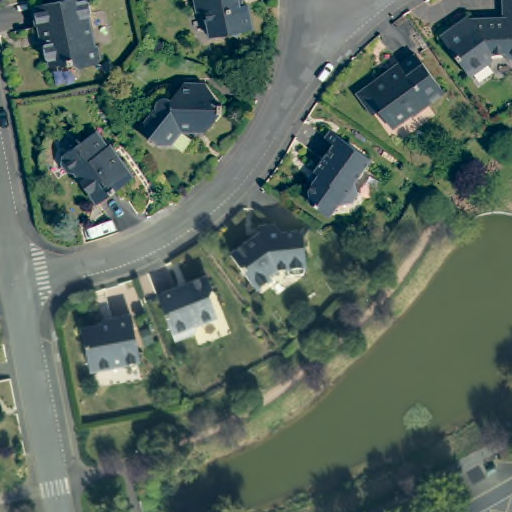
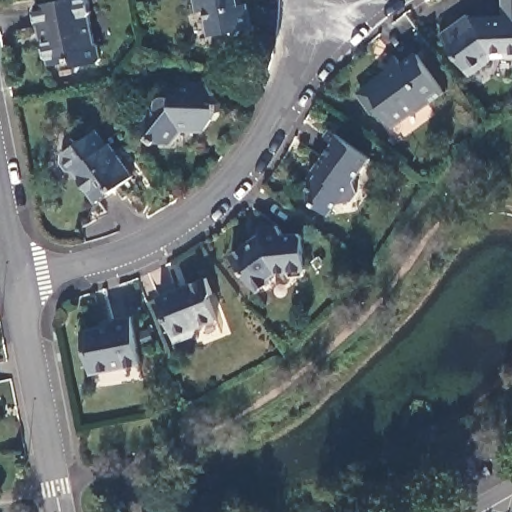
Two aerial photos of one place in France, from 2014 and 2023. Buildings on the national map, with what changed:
unchanged [(66,0),(87,0),(89,1),(90,14),(88,17),(94,44),(98,47),(100,61),(95,65),(81,67),(74,62),(49,65),(48,58),(45,57),(43,46),(45,43),(42,28),(39,29),(34,25),(31,11),(36,6),(66,0)]
unchanged [(239,4),(245,3),(250,28),(240,30),(236,35),(232,32),(210,36),(204,10),(197,11),(195,0),(239,0),(239,4)]
unchanged [(504,53),(504,47),(489,48),(489,55),(467,70),(439,30),(467,11),(474,20),(485,13),(501,13),(501,0),(512,0),(512,52),(504,53)]
unchanged [(443,92),(427,105),(426,103),(412,112),(408,112),(393,122),(384,112),(381,114),(377,110),(373,113),(358,93),(385,74),(387,76),(416,54),(443,92)]
unchanged [(209,84),(224,103),(225,103),(226,113),(224,113),(210,130),(184,129),(172,144),(159,143),(159,145),(150,140),(151,138),(149,123),(151,123),(160,111),(159,106),(161,101),(165,98),(169,97),(174,99),(187,84),(209,84)]
unchanged [(96,202),(74,171),(68,172),(60,162),(61,154),(94,131),(105,146),(109,144),(132,176),(96,202)]
unchanged [(309,203),(307,190),(312,182),(309,180),(314,171),(313,170),(331,144),(324,138),(329,131),(369,160),(353,181),(356,193),(350,202),(336,205),(329,216),(316,208),(309,203)]
unchanged [(230,250),(257,231),(263,231),(263,222),(275,221),(281,229),(297,229),(302,233),(305,263),(302,270),(289,272),(285,266),(277,266),(268,273),(269,276),(256,286),(230,250)]
unchanged [(156,296),(175,289),(175,291),(187,287),(187,285),(205,278),(212,294),(209,300),(216,319),(197,326),(193,335),(174,342),(156,296)]
unchanged [(139,358),(122,362),(120,367),(90,374),(81,331),(112,324),(111,320),(130,317),(139,358)]

